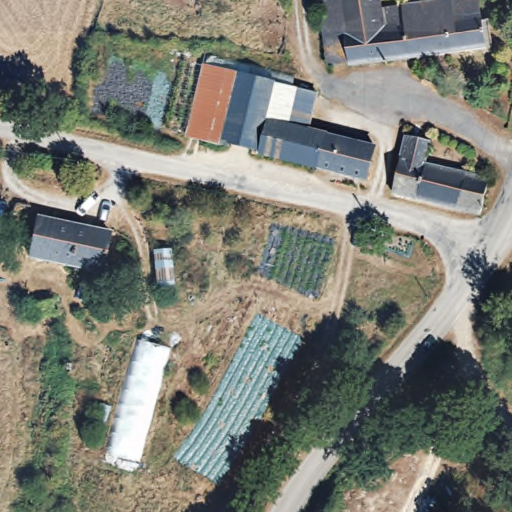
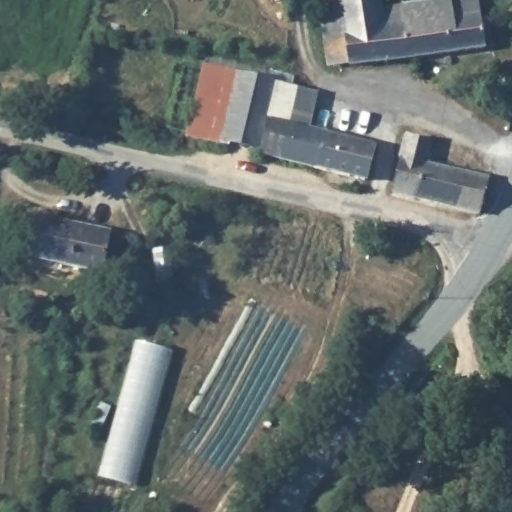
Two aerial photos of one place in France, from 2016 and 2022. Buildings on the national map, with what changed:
unchanged [(312,4),(311,0),(343,0),(312,4)]
unchanged [(375,35),(384,34),(382,16),(474,4),(477,27),(482,27),(486,52),(320,75),(317,44),(312,4),(343,0),(370,0),(375,35)]
unchanged [(182,144),(199,72),(235,80),(219,152),(182,144)]
unchanged [(271,88),(262,125),(254,161),(219,152),(235,80),(271,88)]
unchanged [(316,137),(308,174),(254,161),(262,125),(316,137)]
unchanged [(361,148),(376,152),(372,167),(367,187),(308,174),(316,137),(361,148)]
unchanged [(488,180),(474,218),(387,195),(389,187),(394,165),(396,157),(393,156),(396,143),(399,144),(399,137),(423,143),(422,150),(419,162),(488,180)]
unchanged [(104,237),(94,277),(21,261),(31,221),(104,237)]

